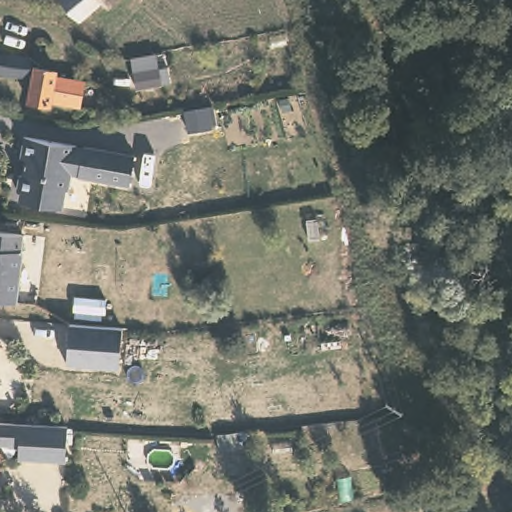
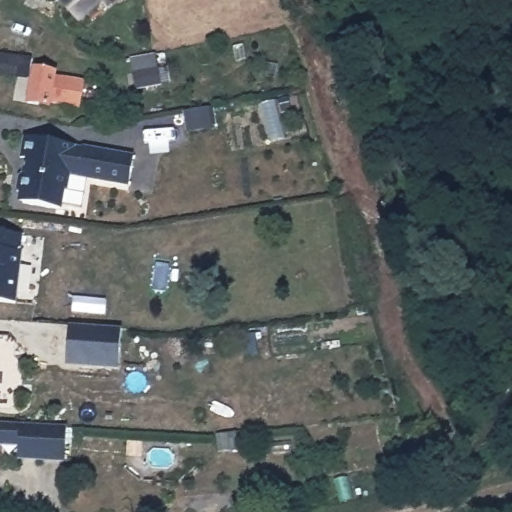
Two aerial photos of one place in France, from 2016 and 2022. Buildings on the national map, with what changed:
unchanged [(105,0),(80,21),(62,0),(114,0),(110,4),(105,0)]
unchanged [(33,56),(29,77),(0,74),(0,52),(33,56)]
unchanged [(58,71),(57,78),(87,81),(82,108),(54,104),(53,106),(28,104),(35,69),(58,71)]
unchanged [(75,172),(76,171),(68,169),(64,185),(62,185),(59,199),(53,203),(21,196),(17,190),(17,188),(14,184),(18,169),(22,166),(25,153),(19,151),(24,130),(74,141),(74,142),(81,144),(81,143),(133,153),(126,183),(75,172)]
unchanged [(16,250),(17,250),(11,301),(0,300),(0,231),(18,233),(16,250)]
unchanged [(119,327),(116,366),(64,363),(67,323),(119,327)]
unchanged [(71,424),(69,458),(22,456),(23,443),(0,441),(0,420),(71,424)]

